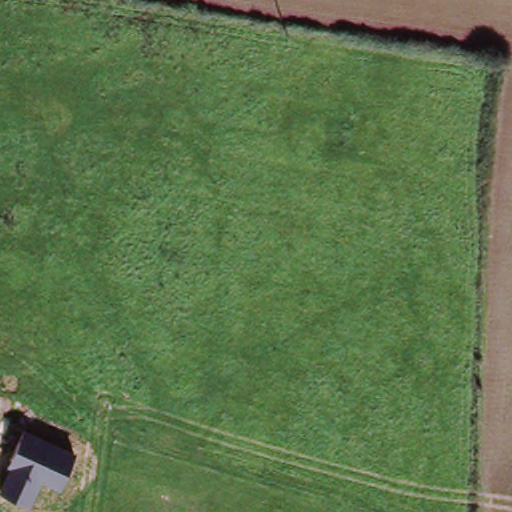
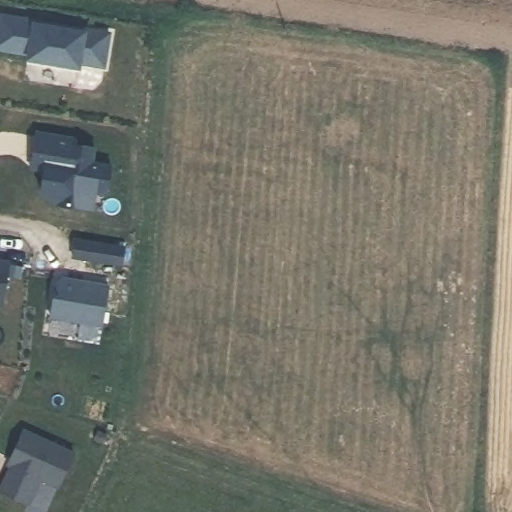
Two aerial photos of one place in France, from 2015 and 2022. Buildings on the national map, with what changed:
new [(68,23),(68,26),(85,29),(85,26),(110,30),(105,64),(81,60),(80,68),(28,60),(30,51),(0,46),(0,18),(1,12),(68,23)]
new [(86,208),(60,205),(43,193),(45,179),(48,176),(45,173),(37,172),(32,171),(33,161),(36,135),(75,139),(74,145),(95,147),(93,162),(112,164),(110,191),(98,189),(97,209),(86,208)]
new [(7,304),(0,303),(0,260),(15,262),(7,304)]
new [(60,282),(66,278),(113,287),(105,326),(54,317),(60,282)]
unchanged [(75,454),(60,489),(40,481),(30,506),(0,494),(0,487),(25,432),(75,454)]

